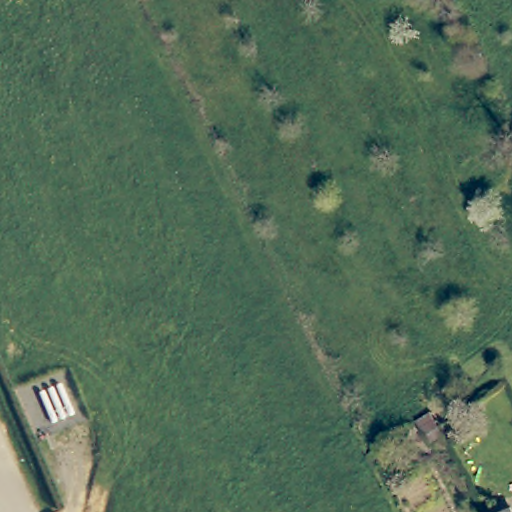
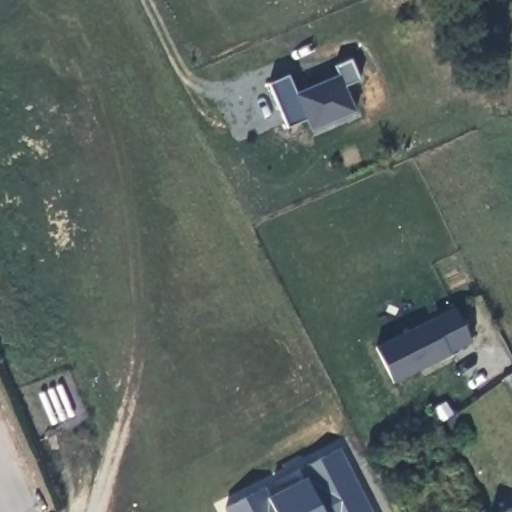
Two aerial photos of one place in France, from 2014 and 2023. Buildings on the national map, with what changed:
new [(289,73),(297,93),(339,76),(335,65),(351,58),(361,81),(346,87),(357,112),(311,130),(308,120),(288,128),(270,82),(289,73)]
new [(455,306),(472,341),(449,352),(450,354),(392,383),(373,346),(455,306)]
unchanged [(446,431),(432,441),(419,421),(435,410),(442,405),(453,420),(443,426),(446,431)]
new [(264,485),(269,495),(304,476),(300,467),(340,447),(372,512),(227,512),(224,505),(264,485)]
unchanged [(508,512),(504,512),(508,510),(508,512)]

